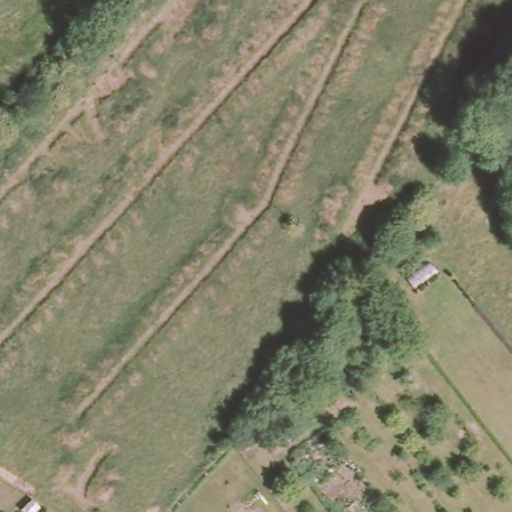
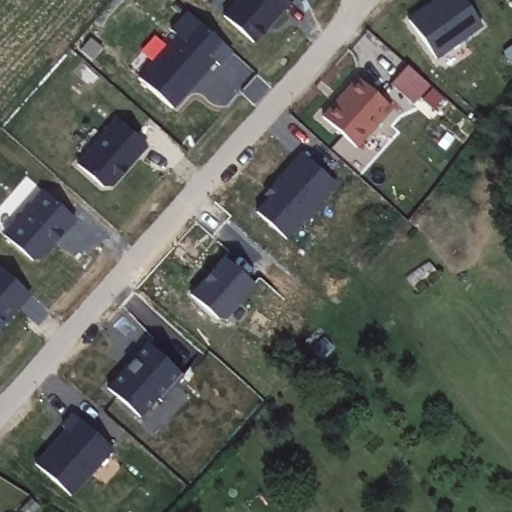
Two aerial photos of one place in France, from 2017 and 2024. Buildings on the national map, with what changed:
new [(255,44),(222,15),(235,0),(291,0),(255,44)]
new [(428,0),(473,0),(485,17),(440,50),(412,12),(428,0)]
new [(175,108),(139,78),(176,35),(170,30),(185,12),(232,53),(222,66),(215,61),(175,108)]
new [(362,70),(396,101),(360,140),(327,110),(362,70)]
new [(103,186),(75,163),(113,118),(147,147),(112,187),(103,186)]
new [(287,240),(255,211),(266,197),(264,195),(300,152),(337,185),(287,240)]
new [(42,259),(32,260),(2,233),(42,191),(75,220),(42,259)]
new [(218,319),(190,294),(222,257),(255,285),(225,320),(218,319)]
new [(0,330),(0,268),(31,296),(0,330)]
new [(140,417),(106,387),(145,342),(180,373),(140,417)]
new [(71,497),(33,462),(63,430),(59,427),(72,412),(114,449),(71,497)]

